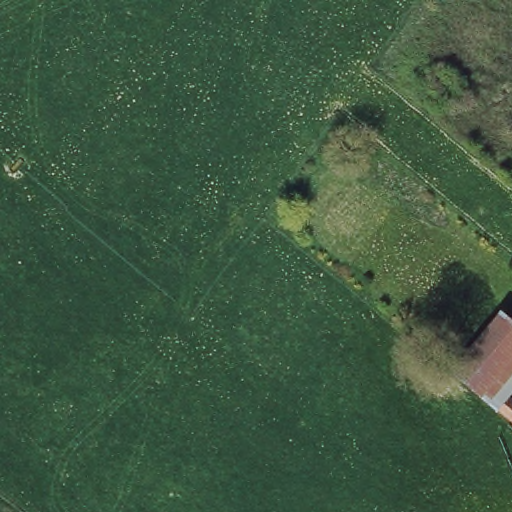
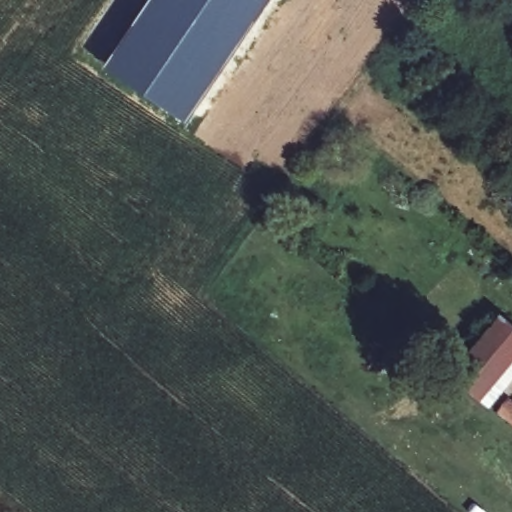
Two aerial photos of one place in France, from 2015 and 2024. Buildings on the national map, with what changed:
new [(273,0),(188,121),(107,66),(152,0),(273,0)]
unchanged [(512,408),(511,410),(512,410),(512,429),(454,381),(495,327),(512,340),(512,408)]

